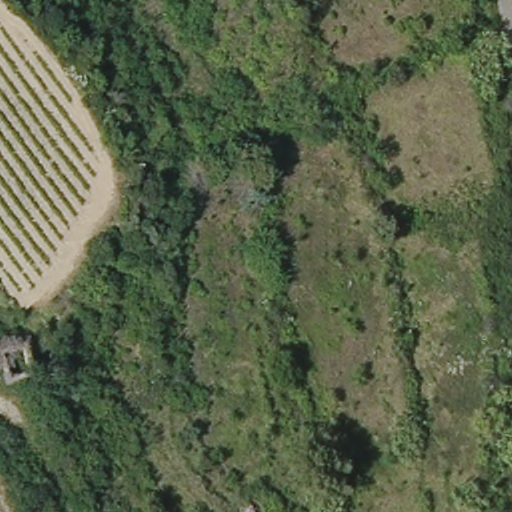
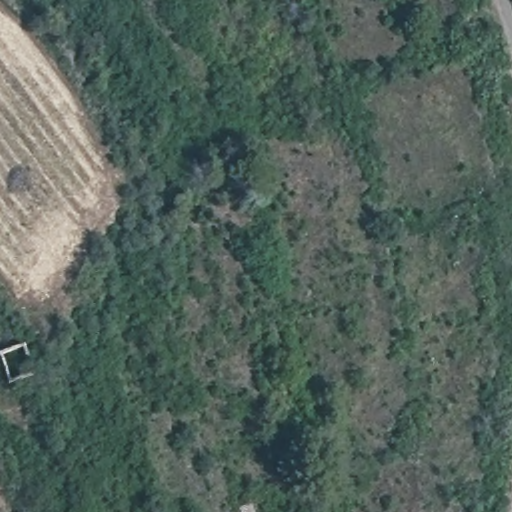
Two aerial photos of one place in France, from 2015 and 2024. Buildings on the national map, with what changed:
unchanged [(401,332),(412,330),(418,330),(420,348),(418,349),(403,349),(401,332)]

